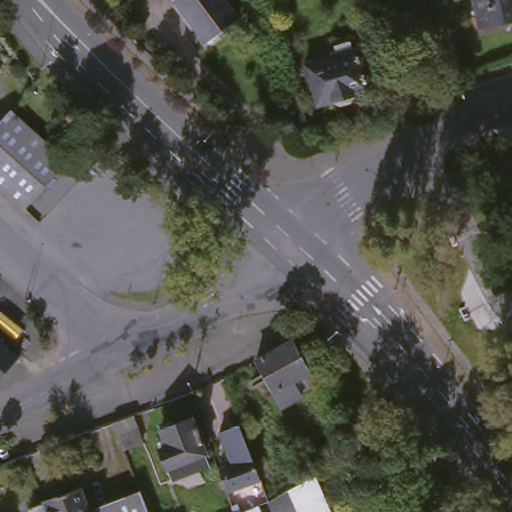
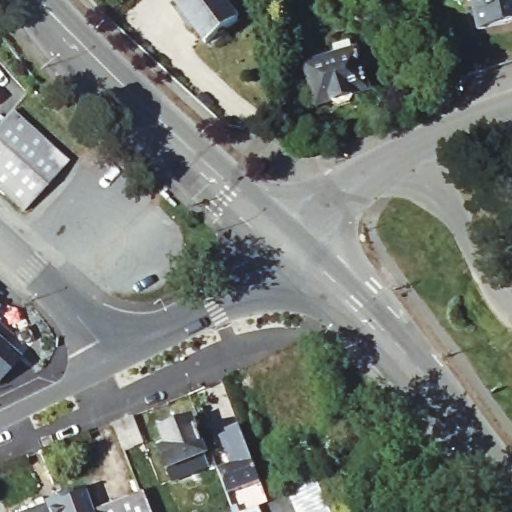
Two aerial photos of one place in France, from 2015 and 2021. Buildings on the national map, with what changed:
unchanged [(170,0),(219,0),(233,20),(201,44),(169,1),(170,0)]
unchanged [(512,0),(512,25),(479,31),(472,0),(512,0)]
unchanged [(302,70),(353,56),(366,93),(313,109),(302,70)]
unchanged [(0,127),(11,115),(68,169),(23,218),(0,197),(0,127)]
demolished [(291,342),(308,374),(295,382),(293,383),(301,397),(281,408),(256,361),(291,342)]
unchanged [(0,372),(0,344),(14,358),(0,372)]
unchanged [(143,442),(123,450),(121,447),(112,424),(132,416),(143,442)]
unchanged [(203,450),(203,451),(198,453),(200,459),(161,475),(153,455),(161,452),(154,435),(187,423),(188,426),(193,423),(203,450)]
unchanged [(231,470),(219,438),(239,431),(260,486),(226,499),(218,475),(231,470)]
unchanged [(330,512),(297,512),(288,491),(314,476),(330,512)]
unchanged [(39,509),(38,507),(76,494),(82,512),(31,512),(39,509)]
unchanged [(134,497),(136,502),(140,512),(95,512),(134,497)]
unchanged [(256,507),(259,512),(244,512),(256,507)]

